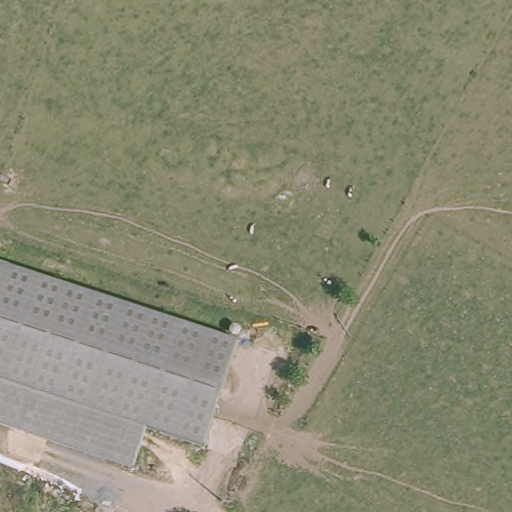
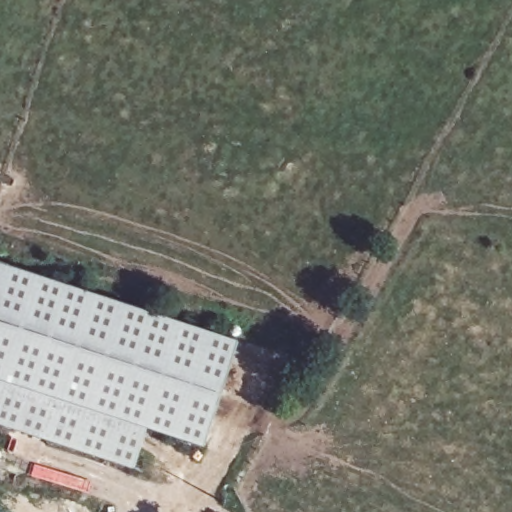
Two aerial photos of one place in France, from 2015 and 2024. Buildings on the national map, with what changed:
unchanged [(0,262),(234,339),(202,447),(143,427),(131,467),(0,424),(0,262)]

